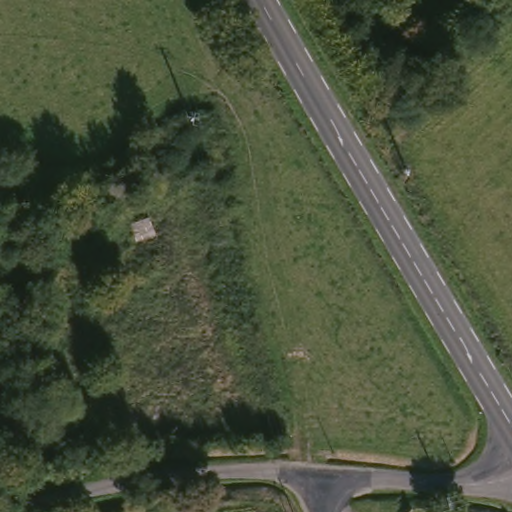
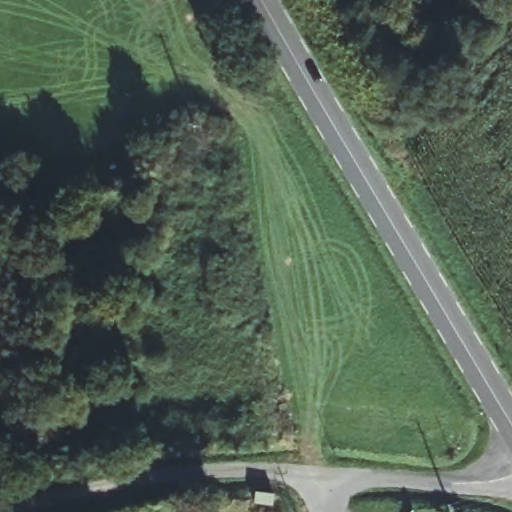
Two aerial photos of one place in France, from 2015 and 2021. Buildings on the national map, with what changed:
[]

